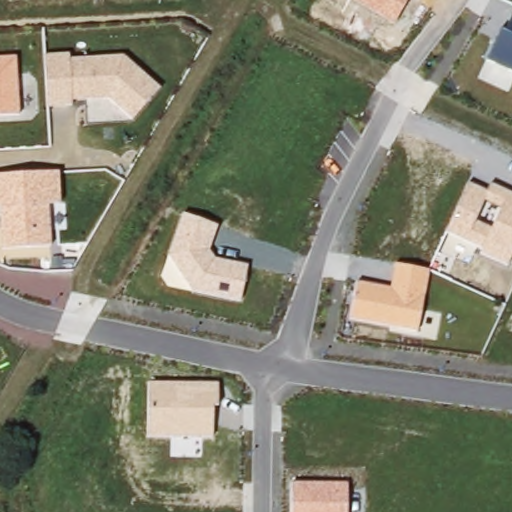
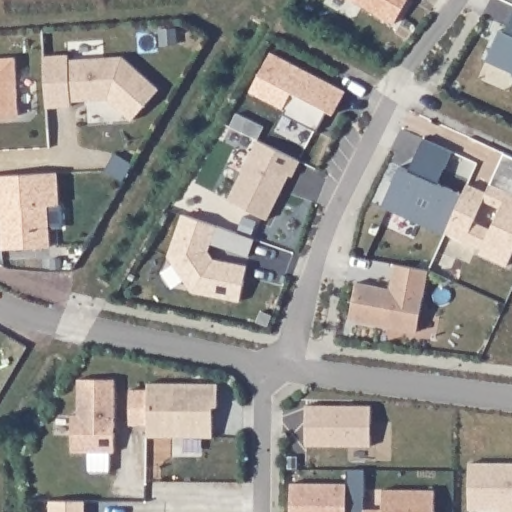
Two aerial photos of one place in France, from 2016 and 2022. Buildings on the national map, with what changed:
unchanged [(396,21),(355,0),(408,0),(396,21)]
unchanged [(499,28),(505,31),(512,17),(512,71),(485,60),(499,28)]
unchanged [(133,117),(111,97),(71,99),(72,105),(49,107),(44,55),(69,54),(70,59),(123,56),(161,89),(133,117)]
unchanged [(0,56),(16,55),(21,114),(0,116),(0,56)]
new [(267,61),(342,100),(330,123),(324,119),(313,140),(280,123),(282,118),(247,100),(267,61)]
new [(239,141),(225,134),(231,121),(245,128),(259,134),(253,147),(239,141)]
new [(454,149),(439,183),(463,193),(444,232),(382,206),(400,165),(409,169),(423,137),(454,149)]
new [(295,168),(288,183),(285,182),(263,227),(223,207),(253,147),(295,168)]
new [(491,184),(504,151),(512,155),(512,193),(491,184)]
unchanged [(0,208),(0,174),(58,170),(60,203),(50,204),(51,244),(4,247),(0,208)]
unchanged [(467,183),(487,191),(491,184),(512,193),(512,254),(507,264),(479,251),(481,247),(444,232),(467,183)]
unchanged [(190,291),(169,254),(182,213),(218,225),(209,249),(214,259),(247,265),(240,300),(190,291)]
unchanged [(351,318),(357,282),(391,287),(395,263),(429,270),(417,330),(351,318)]
unchanged [(148,383),(218,383),(219,406),(213,406),(213,437),(148,435),(148,383)]
new [(72,424),(78,424),(78,387),(115,388),(115,460),(72,460),(72,424)]
new [(305,411),(370,411),(370,452),(305,451),(305,411)]
new [(512,466),(512,512),(467,512),(467,466),(512,466)]
unchanged [(346,483),(346,512),(291,512),(291,483),(346,483)]
new [(434,494),(434,512),(382,512),(382,494),(434,494)]
new [(87,508),(87,512),(52,512),(52,508),(87,508)]

